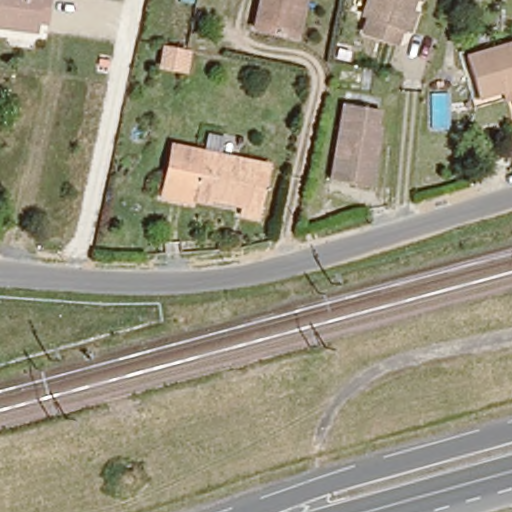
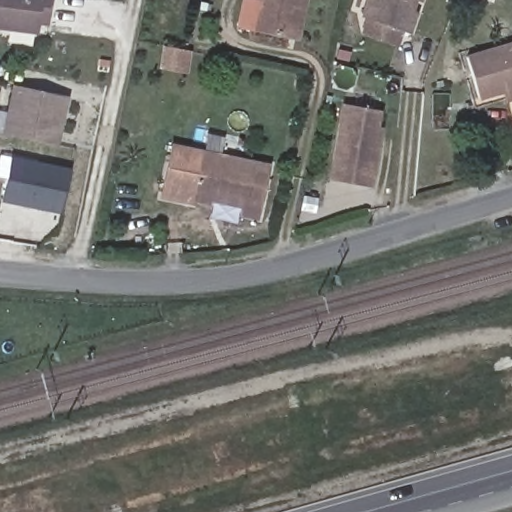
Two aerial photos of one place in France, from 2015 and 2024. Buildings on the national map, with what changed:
unchanged [(35,28),(0,26),(0,0),(53,0),(53,8),(51,24),(35,23),(35,28)]
unchanged [(256,29),(262,0),(304,0),(304,3),(296,38),(288,36),(256,29)]
unchanged [(363,16),(369,0),(416,0),(410,16),(415,19),(408,36),(400,32),(393,47),(363,35),(368,20),(363,16)]
unchanged [(477,98),(466,56),(488,51),(512,44),(512,99),(505,101),(503,91),(477,98)]
new [(68,95),(59,146),(2,134),(12,85),(68,95)]
unchanged [(343,105),(378,113),(372,141),(377,143),(368,188),(330,179),(343,105)]
unchanged [(188,196),(186,204),(158,197),(167,148),(196,154),(200,135),(219,139),(215,158),(265,169),(255,219),(236,215),(237,206),(209,201),(188,196)]
new [(70,169),(61,213),(1,201),(11,156),(70,169)]

